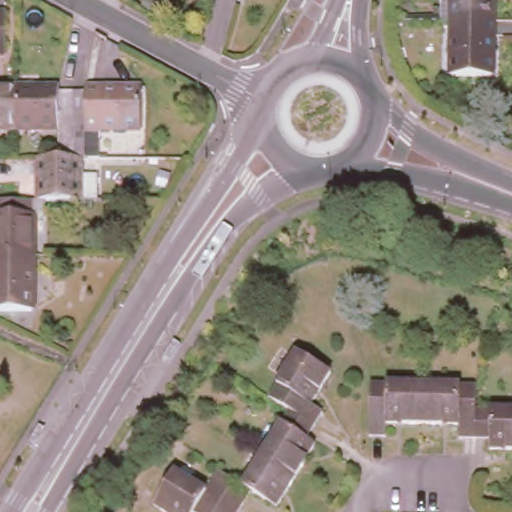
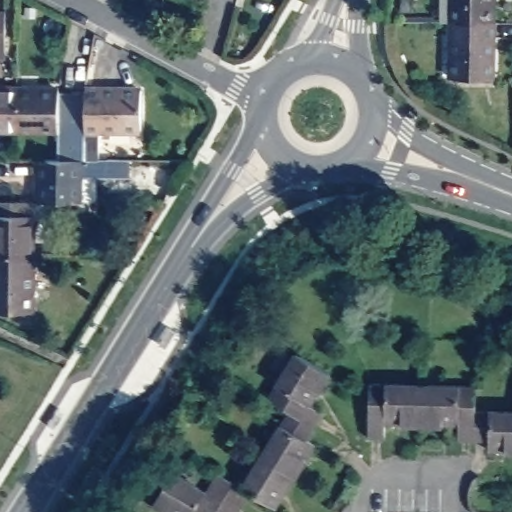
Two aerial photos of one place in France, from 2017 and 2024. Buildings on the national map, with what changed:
unchanged [(456,19),(456,0),(493,0),(493,20),(493,34),(493,73),(457,72),(457,33),(456,19)]
unchanged [(10,50),(0,50),(0,11),(10,11),(10,50)]
unchanged [(0,90),(20,90),(20,130),(0,130),(0,90)]
unchanged [(40,161),(62,161),(62,130),(20,130),(20,90),(62,90),(62,92),(87,93),(87,90),(102,91),(142,90),(142,131),(102,131),(102,161),(87,161),(81,161),(81,203),(40,203),(40,161)]
unchanged [(0,211),(40,212),(39,254),(39,266),(38,308),(0,308),(0,211)]
unchanged [(305,353),(338,375),(319,406),(328,412),(320,426),(292,409),(276,400),(305,353)]
unchanged [(388,422),(388,434),(373,433),(373,385),(423,387),(424,423),(388,422)]
unchanged [(463,436),(463,424),(424,423),(423,387),(478,388),(478,411),(477,436),(463,436)]
unchanged [(320,426),(311,439),(318,444),(300,474),(266,453),(292,409),(320,426)]
unchanged [(512,412),(512,453),(490,453),(491,437),(477,436),(478,411),(512,412)]
unchanged [(279,508),(253,492),(245,505),(213,486),(222,472),(245,487),(266,453),(300,474),(279,508)]
unchanged [(197,512),(170,512),(157,504),(177,470),(210,490),(213,486),(245,505),(240,512),(223,512),(205,501),(197,512)]
unchanged [(223,512),(197,512),(205,501),(223,512)]

